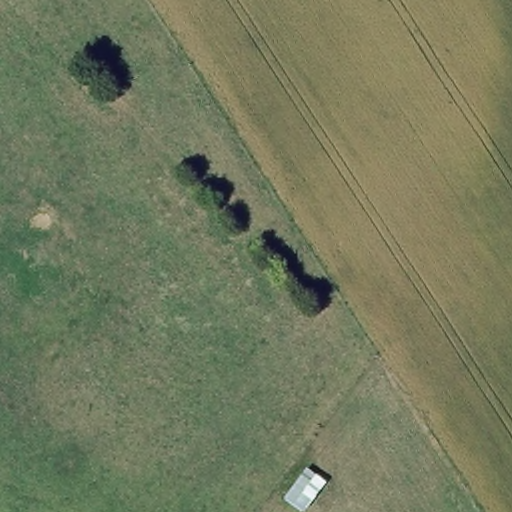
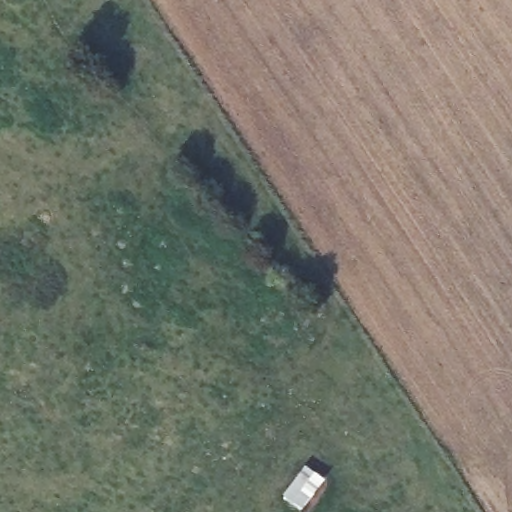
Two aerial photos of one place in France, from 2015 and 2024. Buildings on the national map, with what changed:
unchanged [(299,510),(277,496),(301,463),(322,479),(299,510)]

